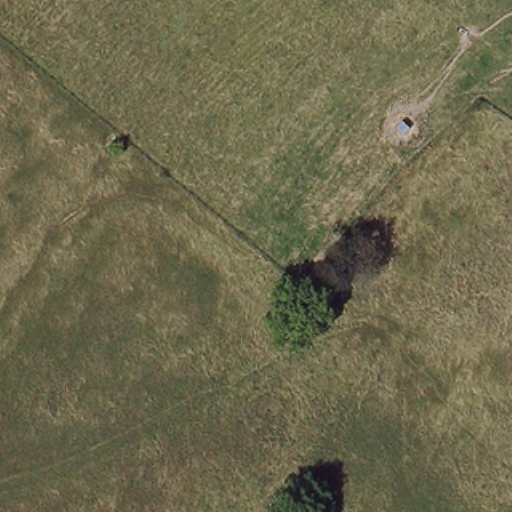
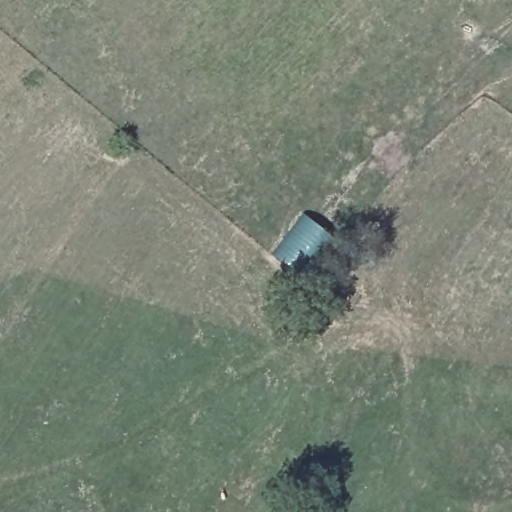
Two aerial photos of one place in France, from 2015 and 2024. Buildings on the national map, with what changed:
[]

